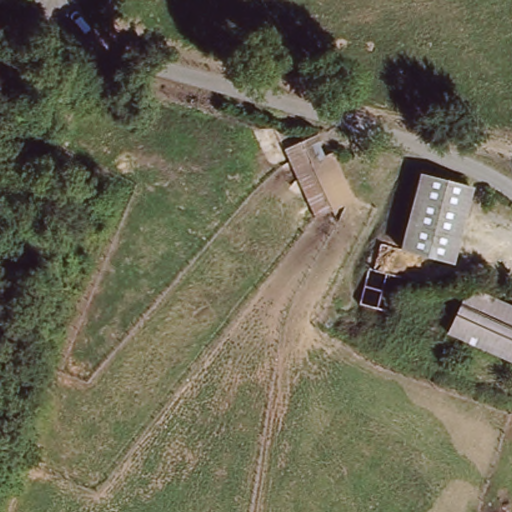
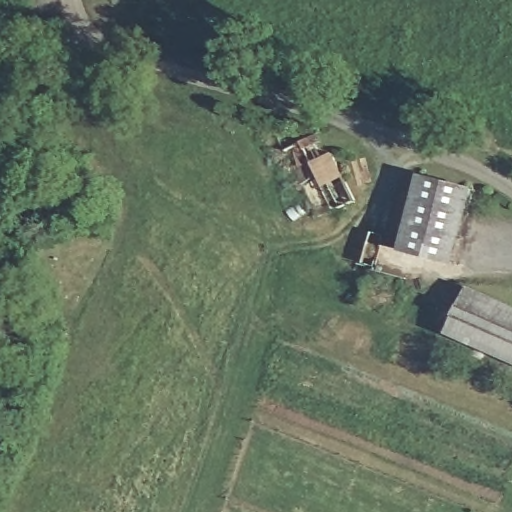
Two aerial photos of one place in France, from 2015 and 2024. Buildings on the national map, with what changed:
unchanged [(327,142),(354,198),(314,214),(289,155),(327,142)]
unchanged [(473,185),(456,265),(402,250),(423,169),(473,185)]
unchanged [(504,296),(483,340),(449,325),(471,282),(504,296)]
unchanged [(483,340),(504,296),(512,300),(512,355),(483,340)]

